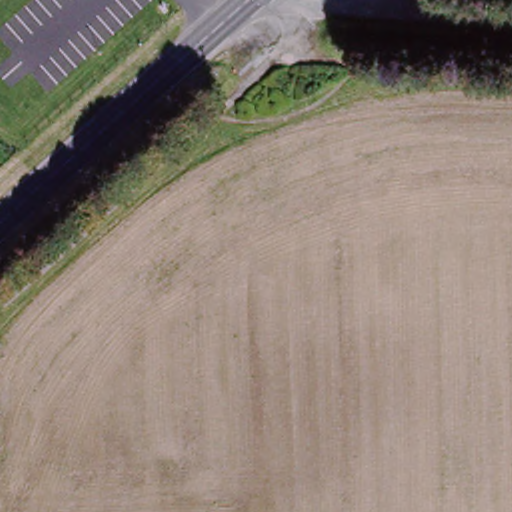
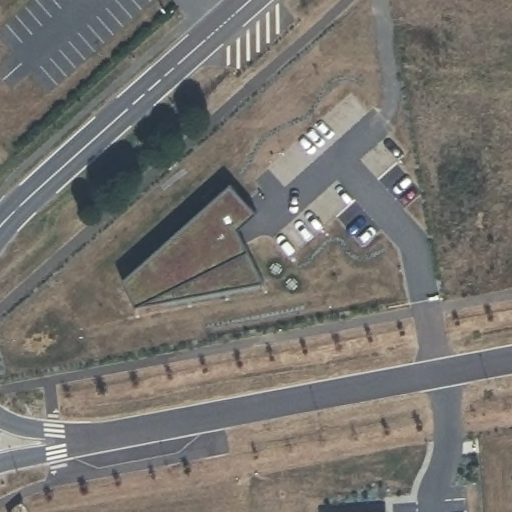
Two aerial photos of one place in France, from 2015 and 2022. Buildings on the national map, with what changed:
new [(258,218),(240,235),(242,241),(247,249),(266,288),(137,312),(124,286),(232,189),(258,218)]
new [(383,512),(347,512),(383,510),(383,512)]

